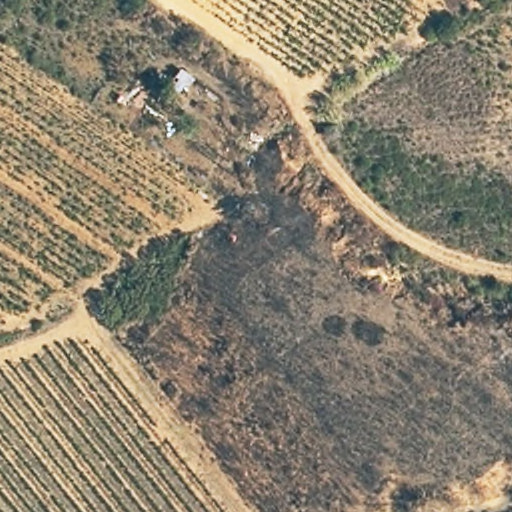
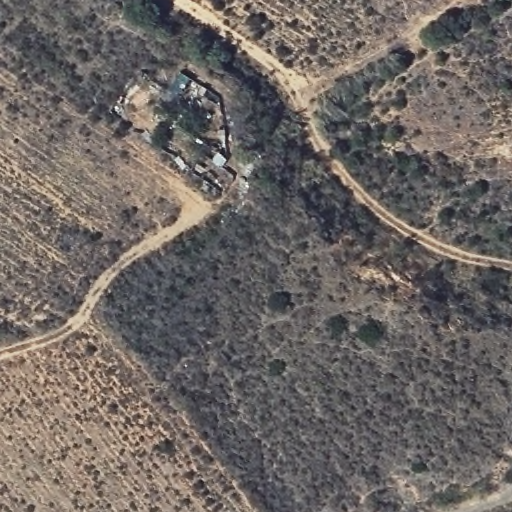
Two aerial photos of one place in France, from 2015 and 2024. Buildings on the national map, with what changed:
unchanged [(152,94),(138,114),(116,100),(130,80),(152,94)]

